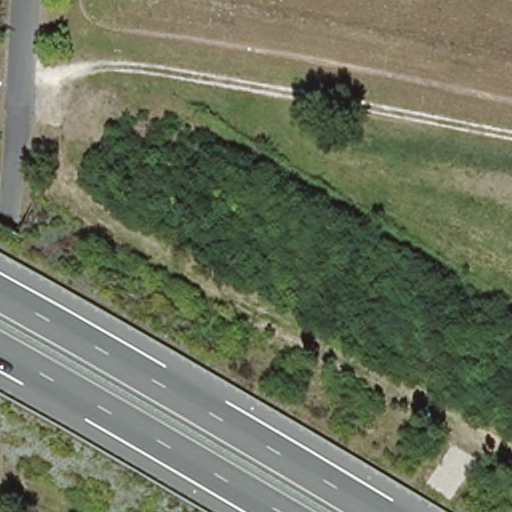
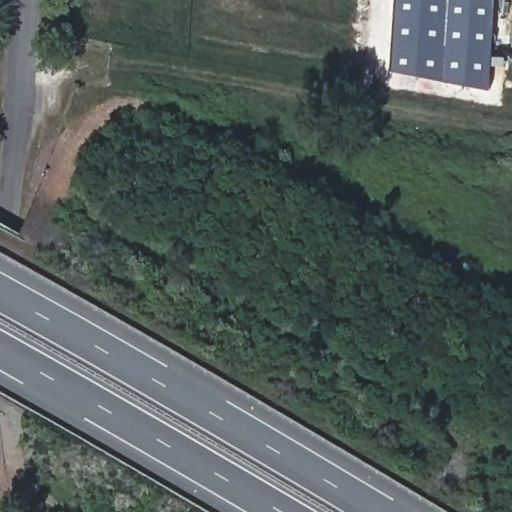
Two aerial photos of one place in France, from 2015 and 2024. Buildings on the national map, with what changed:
new [(392,72),(396,0),(494,0),(490,91),(392,72)]

